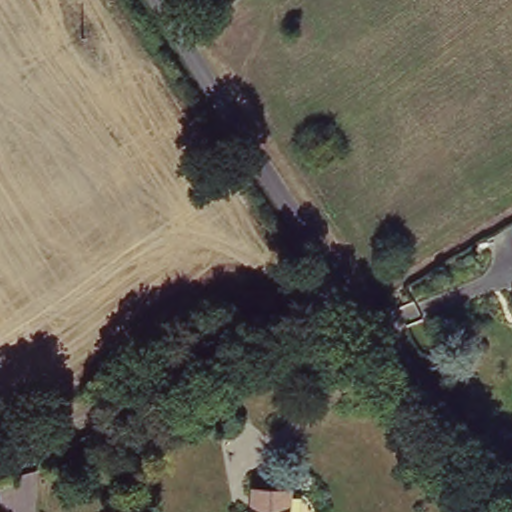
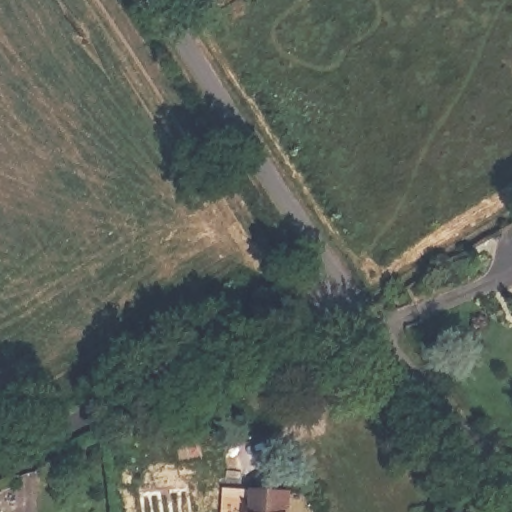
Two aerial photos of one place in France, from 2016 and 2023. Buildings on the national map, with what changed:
unchanged [(291,512),(253,512),(257,486),(293,488),(291,512)]

